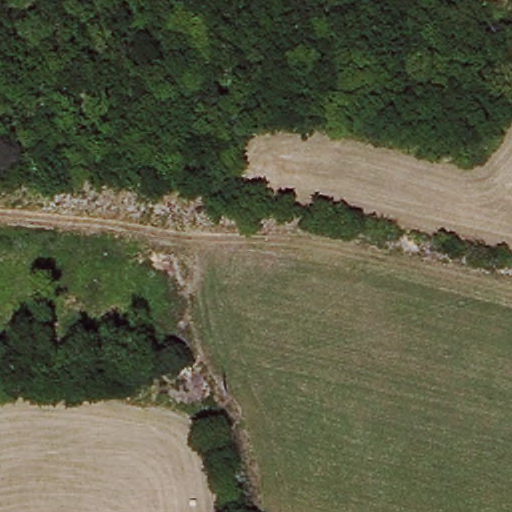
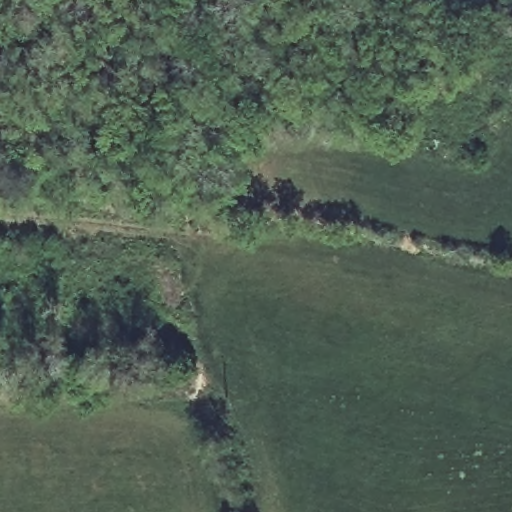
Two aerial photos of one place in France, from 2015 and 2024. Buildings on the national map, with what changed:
[]

